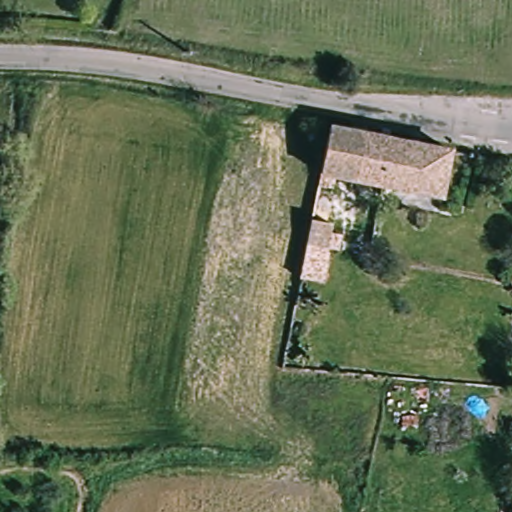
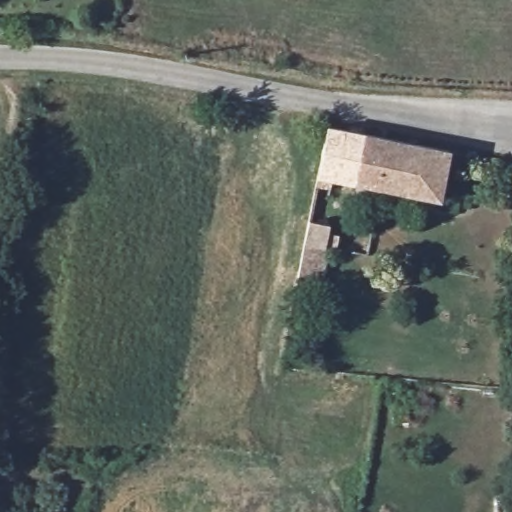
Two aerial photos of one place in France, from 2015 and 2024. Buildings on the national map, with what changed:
unchanged [(333,179),(330,195),(315,192),(327,130),(448,153),(439,200),(378,188),(333,179)]
unchanged [(321,239),(331,241),(328,255),(321,253),(315,284),(293,280),(303,227),(323,231),(321,239)]

